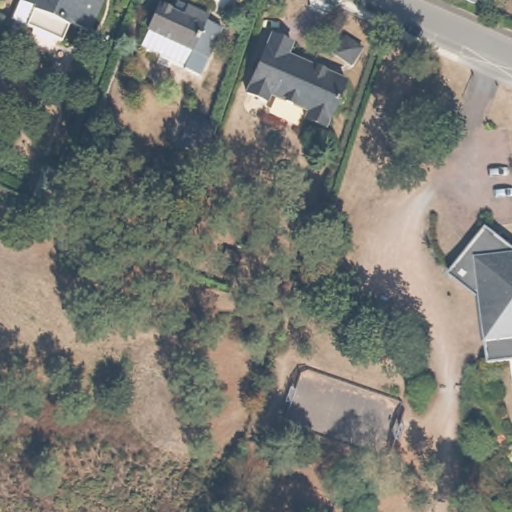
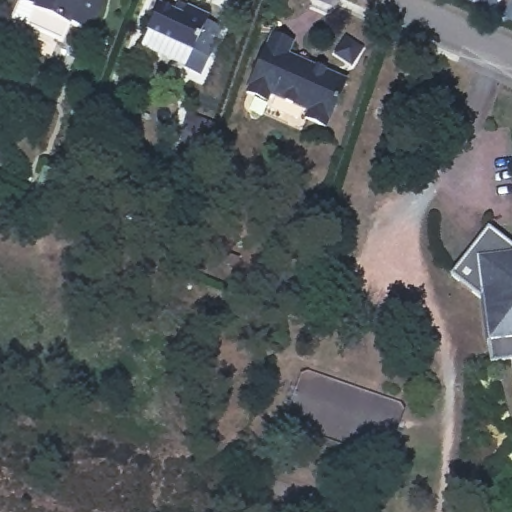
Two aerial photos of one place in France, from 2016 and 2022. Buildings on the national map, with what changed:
unchanged [(72,10),(60,42),(11,16),(19,0),(99,0),(91,19),(72,10)]
unchanged [(151,0),(173,10),(177,1),(199,10),(197,15),(207,19),(213,22),(193,68),(190,67),(176,61),(184,45),(138,25),(149,0),(151,0)]
unchanged [(358,43),(348,58),(332,46),(344,30),(358,43)]
unchanged [(293,41),(289,50),(347,75),(328,124),(309,115),(310,108),(274,92),(270,99),(253,92),(274,34),(293,41)]
unchanged [(186,109),(215,119),(208,135),(179,126),(186,109)]
unchanged [(478,295),(447,273),(484,225),(512,246),(512,360),(489,363),(478,295)]

